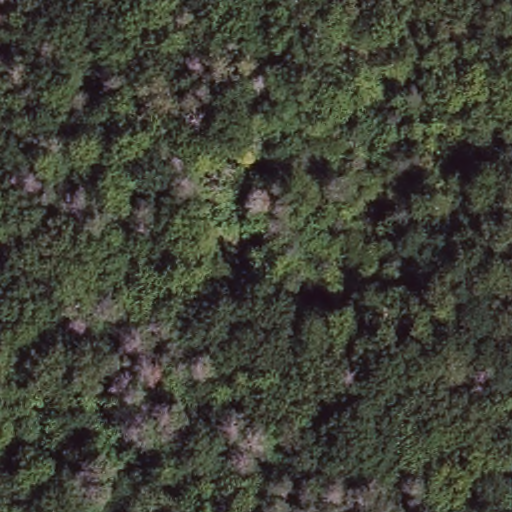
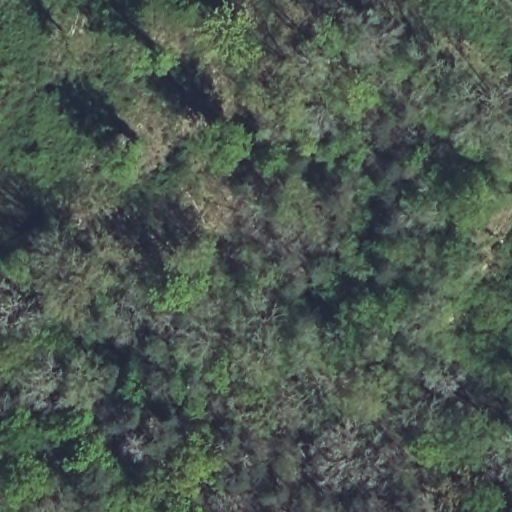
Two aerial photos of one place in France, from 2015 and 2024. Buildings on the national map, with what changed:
[]

